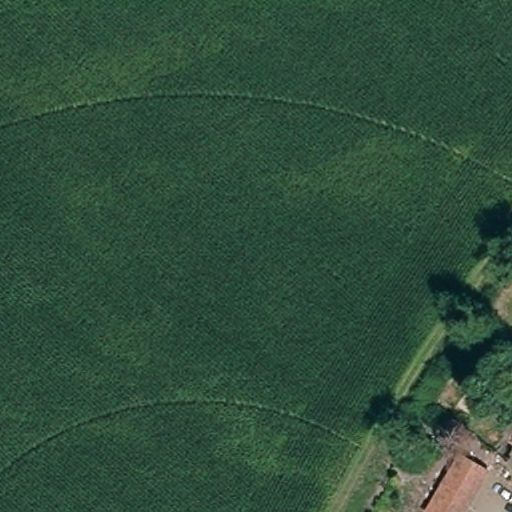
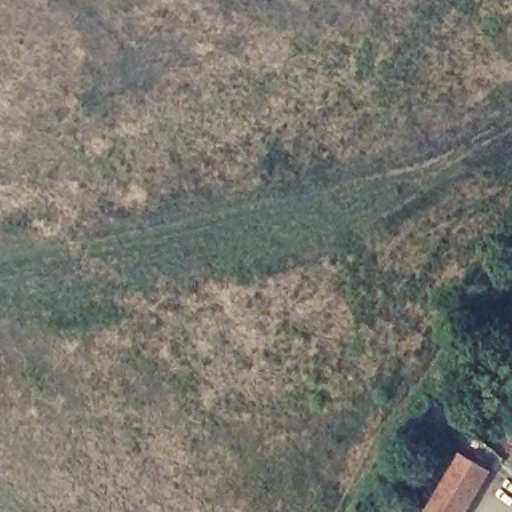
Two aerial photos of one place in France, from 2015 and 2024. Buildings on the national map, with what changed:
unchanged [(512,425),(512,438),(507,436),(512,425)]
unchanged [(472,512),(432,512),(465,455),(494,473),(472,512)]

